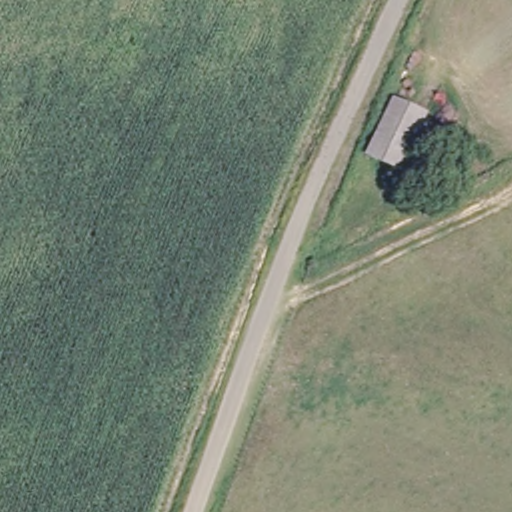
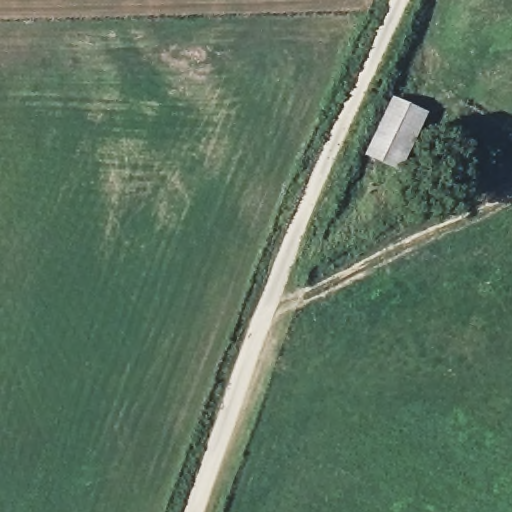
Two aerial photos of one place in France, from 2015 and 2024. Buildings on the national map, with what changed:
unchanged [(368,150),(395,91),(433,111),(408,171),(368,150)]

